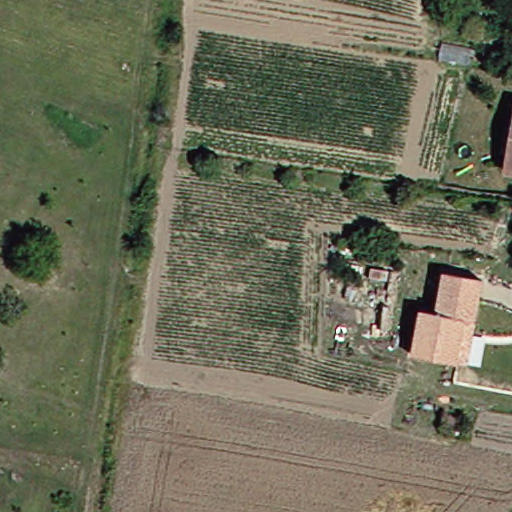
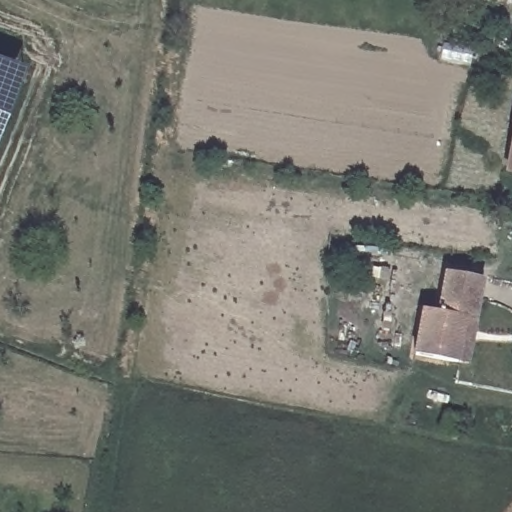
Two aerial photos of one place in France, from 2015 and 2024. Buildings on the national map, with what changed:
new [(24,64),(0,126),(0,55),(24,64)]
unchanged [(512,142),(512,166),(507,166),(512,142)]
unchanged [(426,310),(445,314),(451,274),(487,279),(480,324),(472,363),(462,361),(418,353),(426,310)]

